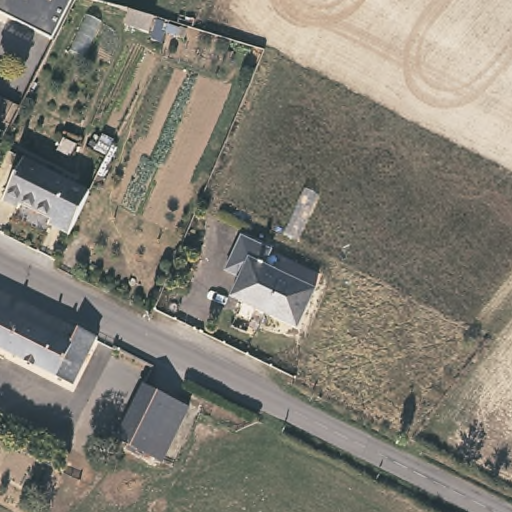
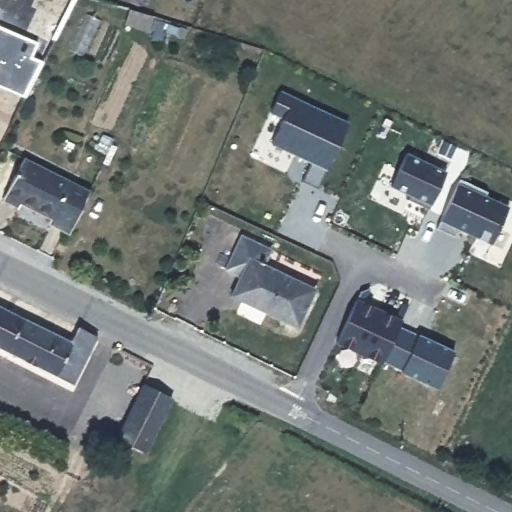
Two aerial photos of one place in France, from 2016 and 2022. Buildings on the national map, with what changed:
unchanged [(54,36),(0,10),(0,0),(71,0),(54,36)]
unchanged [(149,15),(143,31),(121,23),(125,8),(149,15)]
new [(312,163),(272,145),(282,119),(270,113),(280,90),(349,121),(318,189),(302,182),(312,163)]
unchanged [(10,135),(0,130),(0,92),(25,105),(10,135)]
new [(405,155),(445,174),(428,211),(408,202),(410,198),(390,188),(405,155)]
unchanged [(93,191),(75,232),(54,222),(55,218),(31,205),(21,204),(6,195),(28,156),(93,191)]
new [(459,180),(487,193),(484,198),(508,209),(491,245),(457,230),(453,238),(436,230),(459,180)]
unchanged [(276,246),(270,263),(320,285),(303,323),(236,294),(244,274),(231,267),(245,233),(276,246)]
new [(357,299),(404,320),(400,326),(455,351),(439,392),(382,365),(336,344),(357,299)]
unchanged [(101,331),(79,380),(0,346),(0,302),(75,335),(80,322),(101,331)]
unchanged [(175,396),(148,447),(121,433),(146,382),(175,396)]

